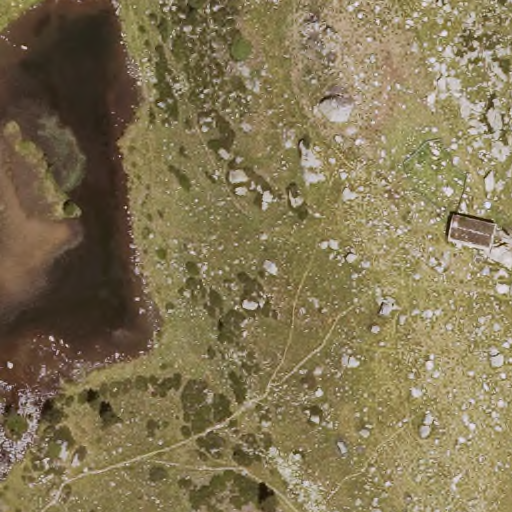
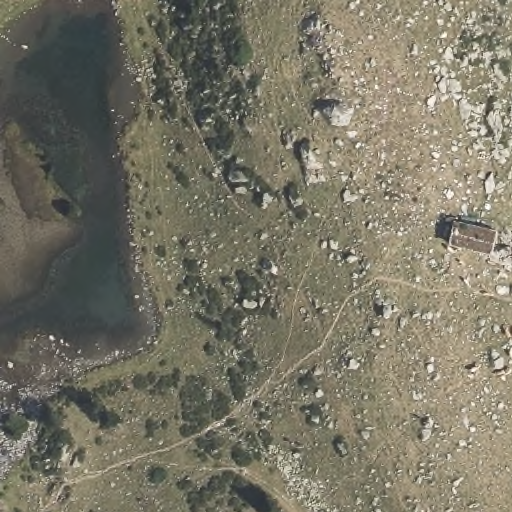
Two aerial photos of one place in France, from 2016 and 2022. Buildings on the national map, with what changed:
unchanged [(497,235),(492,258),(452,246),(458,223),(497,235)]

